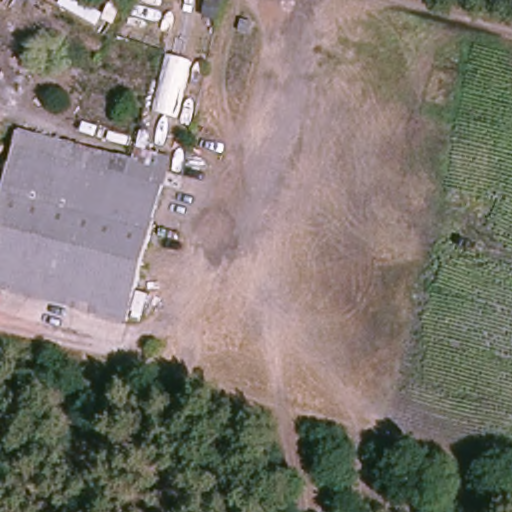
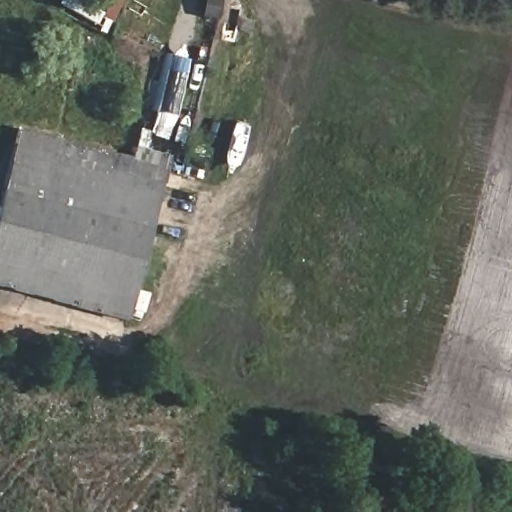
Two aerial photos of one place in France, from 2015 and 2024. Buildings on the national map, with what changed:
unchanged [(0,274),(0,199),(22,139),(169,179),(128,313),(0,274)]

